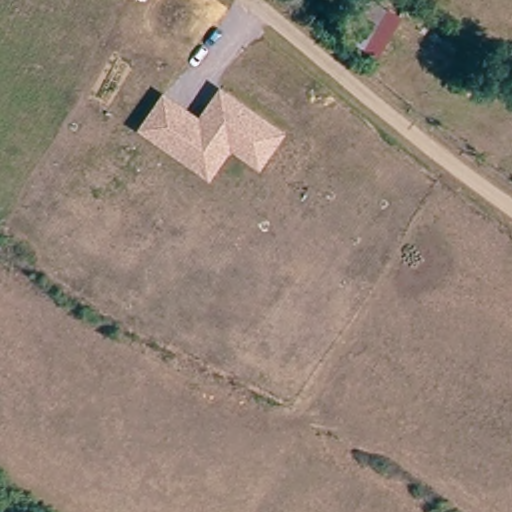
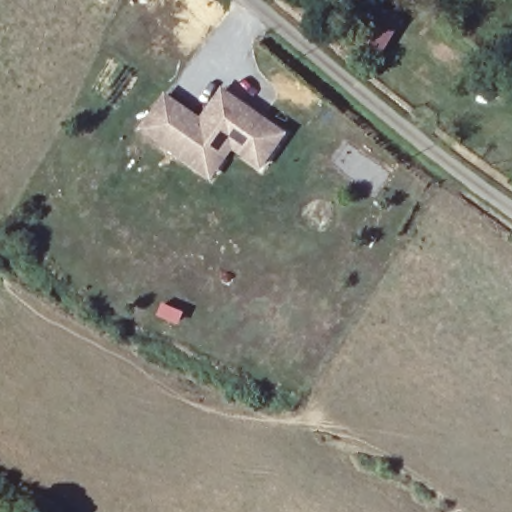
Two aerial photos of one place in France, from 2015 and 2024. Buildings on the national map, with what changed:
unchanged [(200,168),(145,131),(167,99),(203,123),(215,105),(224,92),(230,97),(286,134),(263,167),(232,146),(214,177),(200,168)]

